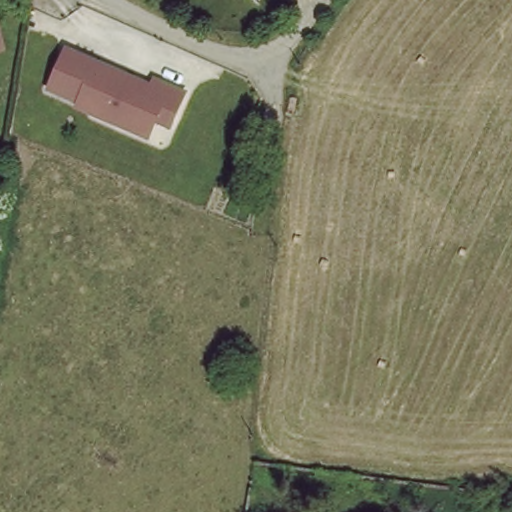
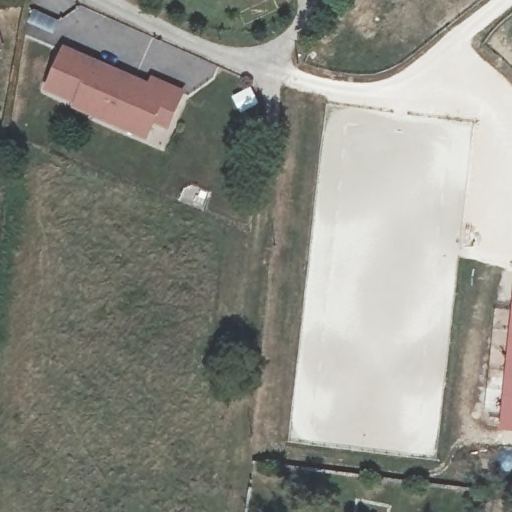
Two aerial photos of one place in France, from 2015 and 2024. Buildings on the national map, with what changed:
unchanged [(113,115),(90,107),(71,99),(73,94),(43,82),(58,41),(146,77),(149,69),(178,82),(167,113),(151,107),(143,127),(113,115)]
new [(498,430),(512,280),(512,431),(498,430)]

